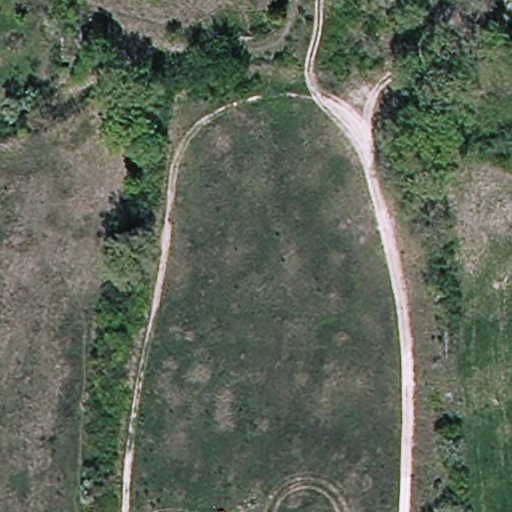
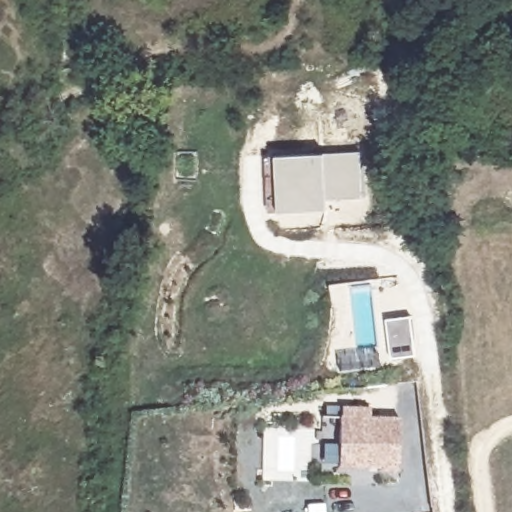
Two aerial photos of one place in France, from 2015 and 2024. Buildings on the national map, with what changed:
new [(280,212),(279,202),(276,156),(361,151),(363,186),(363,196),(328,199),(328,209),(280,212)]
new [(389,319),(414,316),(418,356),(394,359),(389,319)]
new [(341,419),(343,419),(343,410),(372,410),(372,420),(402,420),(402,472),(382,472),(382,470),(341,469),(341,419)]

